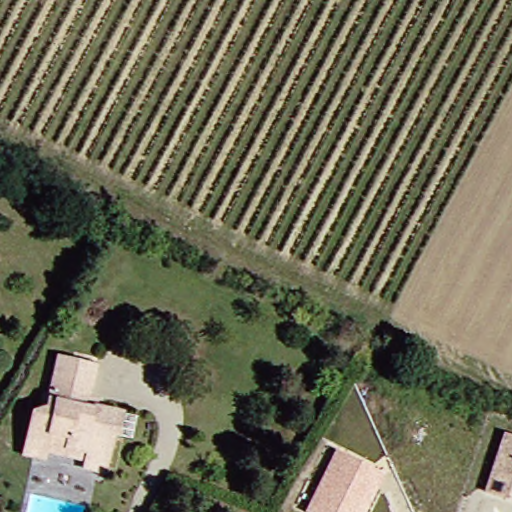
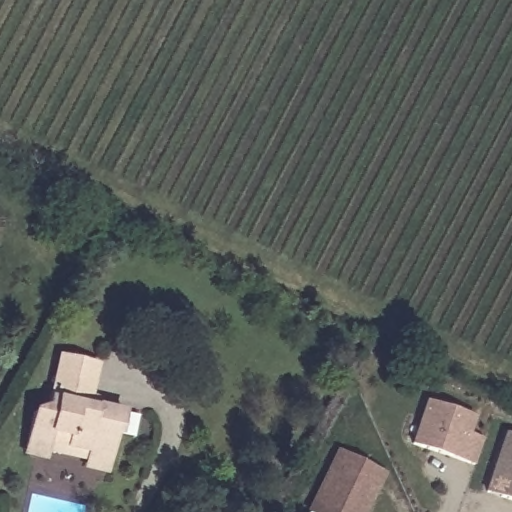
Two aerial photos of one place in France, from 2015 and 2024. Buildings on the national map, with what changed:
unchanged [(82,466),(84,457),(85,449),(46,442),(45,449),(44,457),(24,451),(25,445),(30,409),(47,410),(59,353),(97,361),(91,401),(122,409),(118,438),(112,436),(107,461),(106,471),(82,466)]
new [(409,444),(423,400),(474,416),(469,434),(481,437),(473,464),(459,459),(409,444)]
unchanged [(483,498),(505,430),(512,433),(512,508),(483,498)]
unchanged [(342,451),(382,470),(363,512),(312,512),(342,451)]

